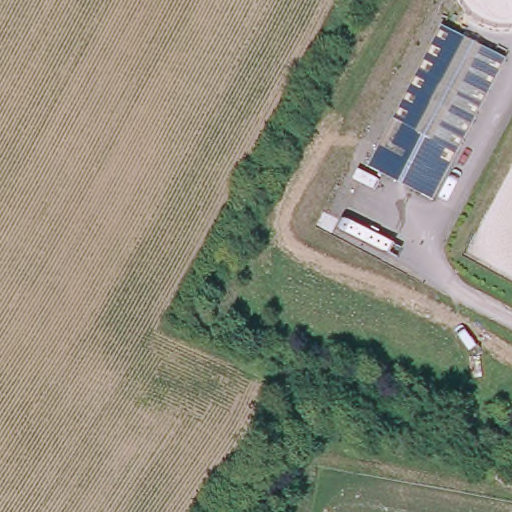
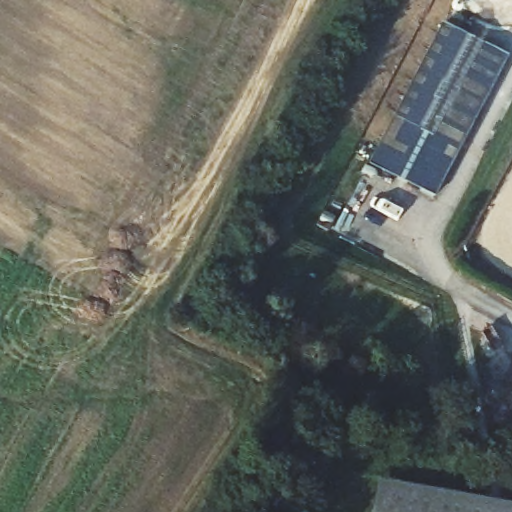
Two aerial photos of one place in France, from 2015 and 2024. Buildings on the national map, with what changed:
unchanged [(507,59),(435,199),(369,164),(441,24),(507,59)]
new [(512,512),(372,512),(377,483),(512,509),(512,512)]

